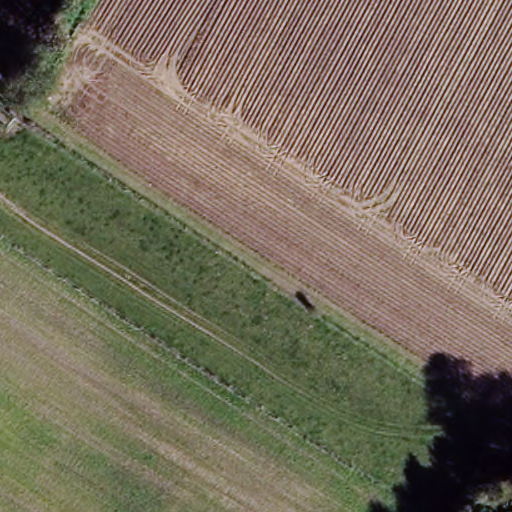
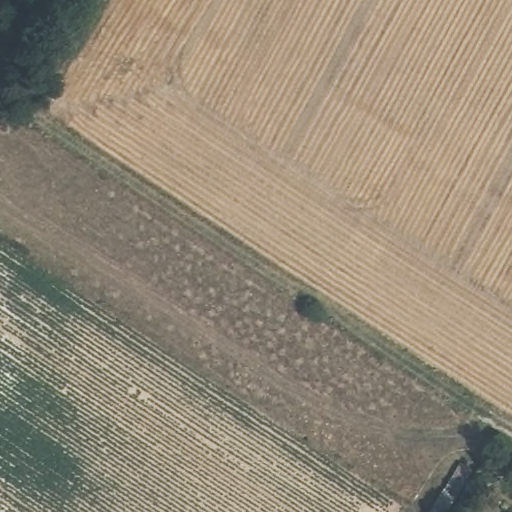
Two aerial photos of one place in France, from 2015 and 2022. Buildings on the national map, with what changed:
unchanged [(512,488),(512,507),(503,501),(512,488)]

